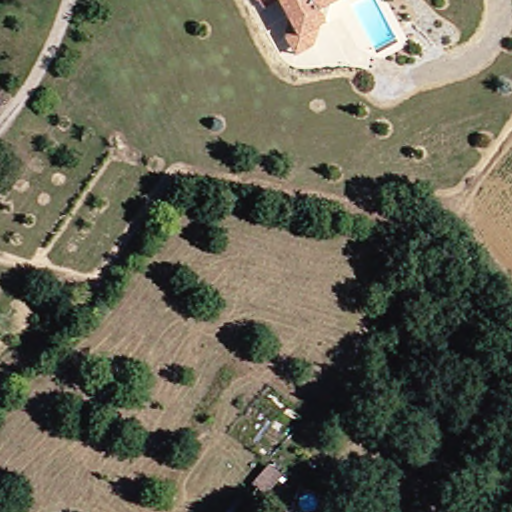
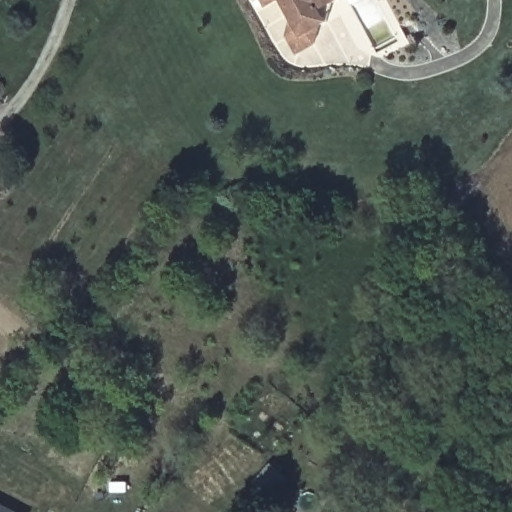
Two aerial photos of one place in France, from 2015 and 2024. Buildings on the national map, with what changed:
unchanged [(331,21),(306,34),(291,4),(289,0),(347,0),(327,10),(331,21)]
new [(0,503),(17,512),(0,512),(0,503)]

